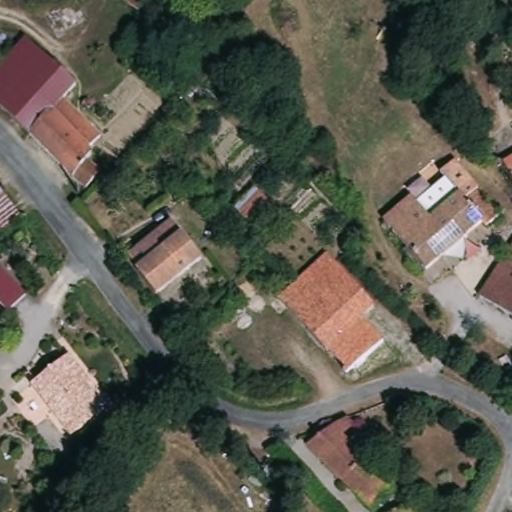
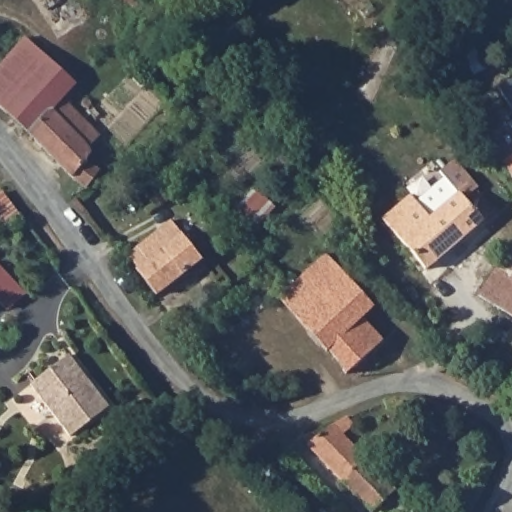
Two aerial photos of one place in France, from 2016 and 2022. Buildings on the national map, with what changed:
unchanged [(149,0),(138,17),(111,1),(112,0),(149,0)]
unchanged [(85,188),(72,178),(69,175),(18,126),(0,108),(0,55),(4,59),(25,37),(75,83),(61,99),(86,122),(92,128),(100,135),(101,136),(87,148),(87,154),(84,157),(87,160),(100,170),(85,188)]
unchanged [(512,156),(512,183),(500,163),(512,156)]
unchanged [(412,195),(423,207),(432,216),(446,205),(460,194),(455,188),(458,186),(470,178),(500,214),(487,225),(484,221),(426,268),(385,218),(412,195)]
unchanged [(161,212),(192,251),(149,284),(129,259),(130,258),(120,245),(161,212)]
unchanged [(512,250),(512,318),(479,296),(512,250)]
unchanged [(195,254),(208,269),(165,305),(151,290),(195,254)]
unchanged [(288,287),(325,254),(335,263),(343,273),(372,304),(358,317),(347,326),(326,347),(322,350),(276,297),(285,289),(288,287)]
unchanged [(1,316),(0,315),(0,283),(16,298),(1,316)]
unchanged [(347,326),(358,317),(380,340),(342,373),(339,368),(342,365),(326,347),(347,326)]
unchanged [(71,357),(111,407),(74,436),(35,386),(71,357)]
unchanged [(375,511),(308,444),(337,425),(349,420),(352,418),(359,427),(357,428),(348,437),(398,490),(375,511)]

